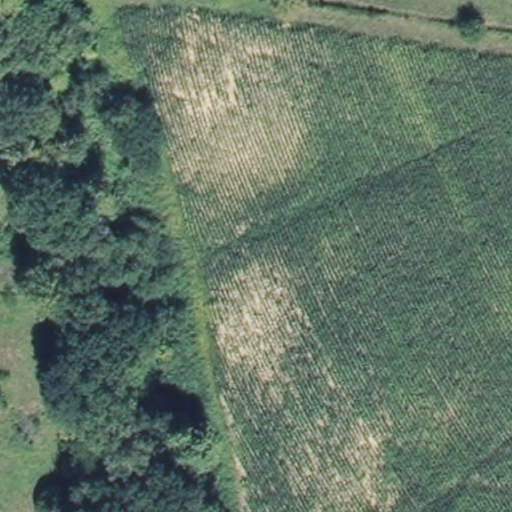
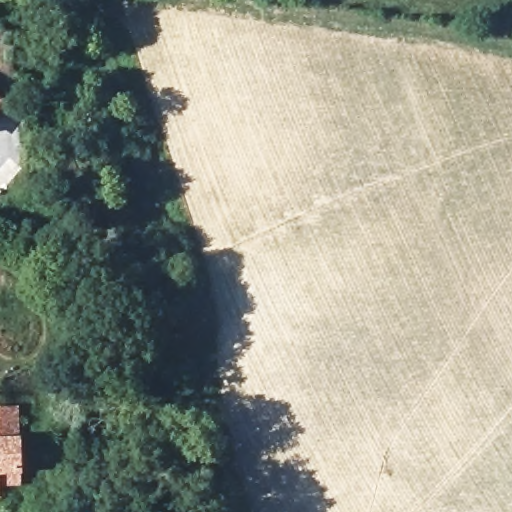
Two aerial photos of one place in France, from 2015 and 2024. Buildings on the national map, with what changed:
new [(0,103),(0,100),(2,101),(0,103)]
new [(18,407),(22,485),(0,487),(0,407),(18,407)]

